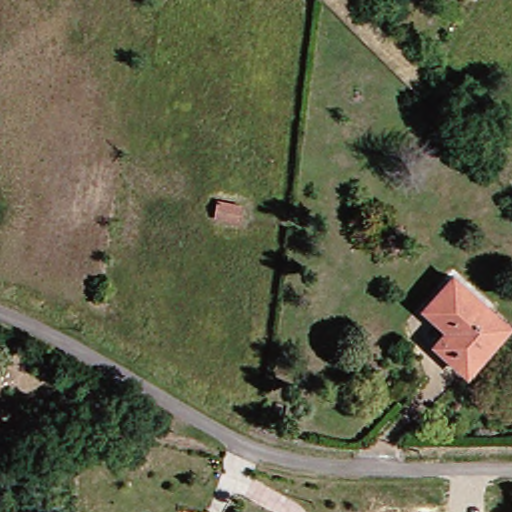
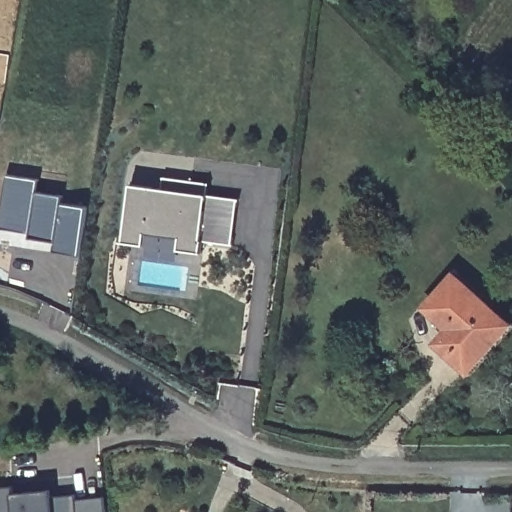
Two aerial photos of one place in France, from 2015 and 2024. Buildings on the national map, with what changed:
new [(160,185),(162,174),(212,181),(210,192),(160,185)]
new [(40,181),(38,193),(64,198),(62,205),(88,209),(81,257),(55,253),(56,244),(31,240),(32,234),(0,228),(9,176),(40,181)]
new [(243,197),(236,246),(212,242),(210,255),(186,252),(188,237),(151,231),(149,246),(121,242),(131,180),(243,197)]
demolished [(241,204),(238,221),(217,217),(219,201),(241,204)]
unchanged [(432,346),(446,331),(421,309),(449,276),(483,306),(480,310),(500,328),(461,371),(432,346)]
new [(0,512),(0,490),(12,489),(12,495),(52,491),(54,504),(105,499),(106,512),(0,512)]

